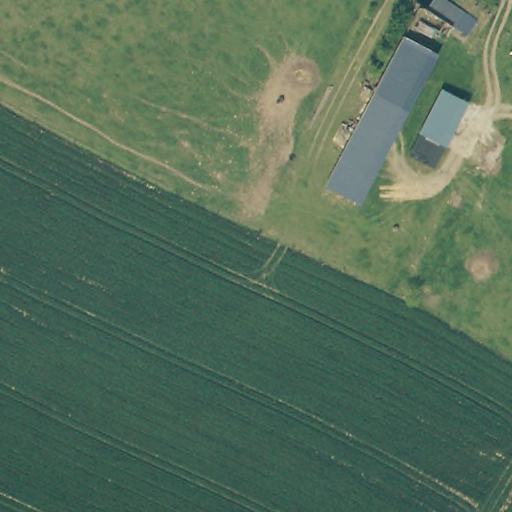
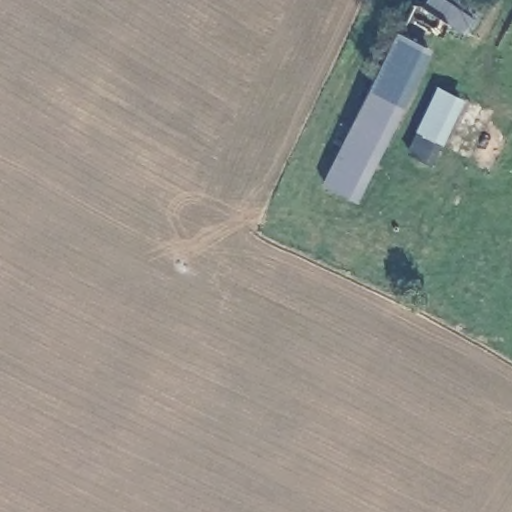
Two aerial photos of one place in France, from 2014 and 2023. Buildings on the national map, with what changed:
unchanged [(448,21),(353,204),(322,181),(414,1),(448,21)]
unchanged [(460,95),(426,160),(410,151),(446,87),(460,95)]

